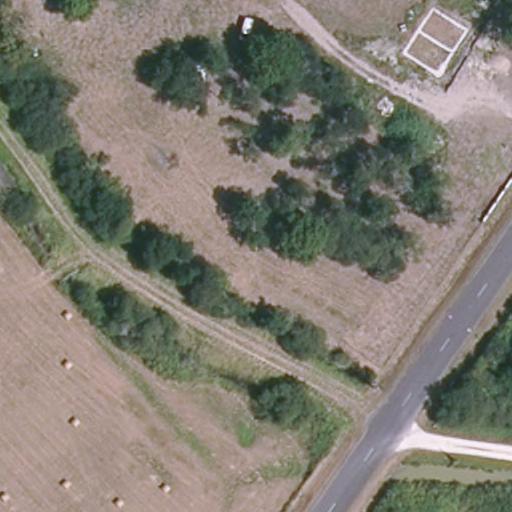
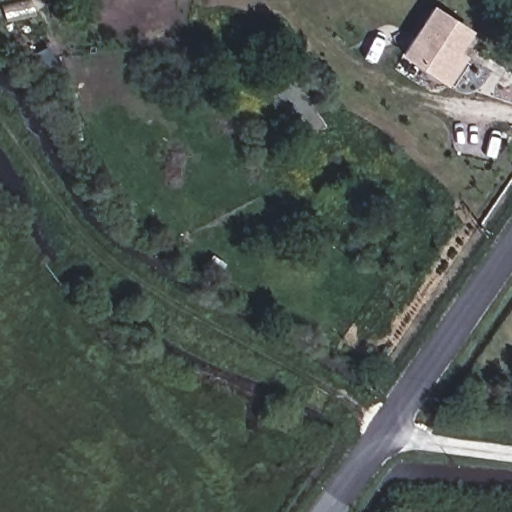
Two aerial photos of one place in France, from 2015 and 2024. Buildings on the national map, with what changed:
new [(433,4),(473,30),(461,51),(468,55),(448,85),(402,53),(433,4)]

